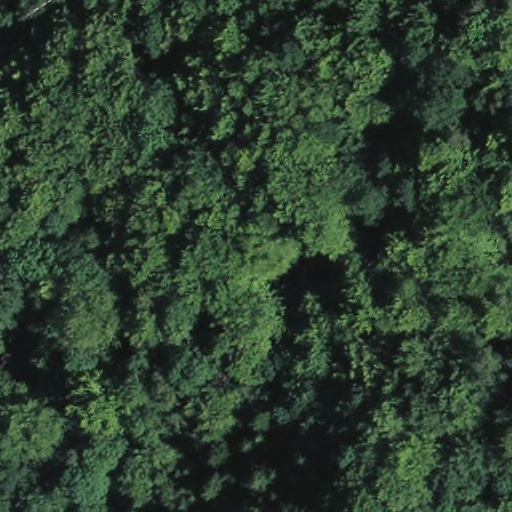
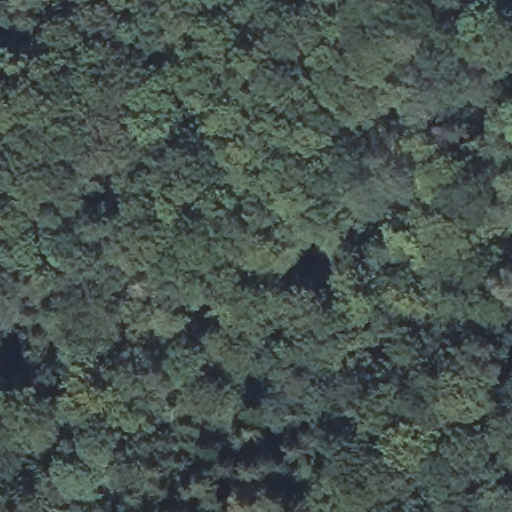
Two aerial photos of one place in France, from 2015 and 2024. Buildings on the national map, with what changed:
[]

